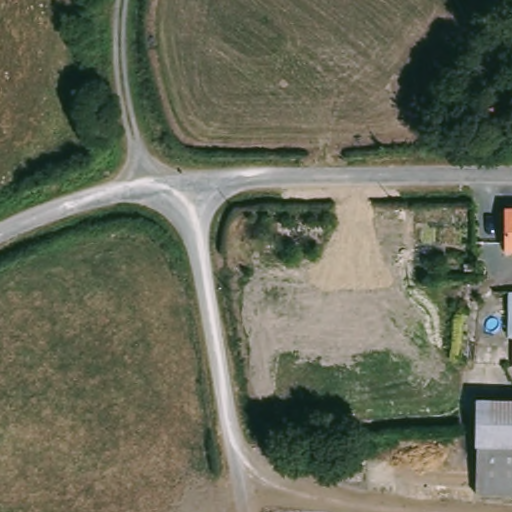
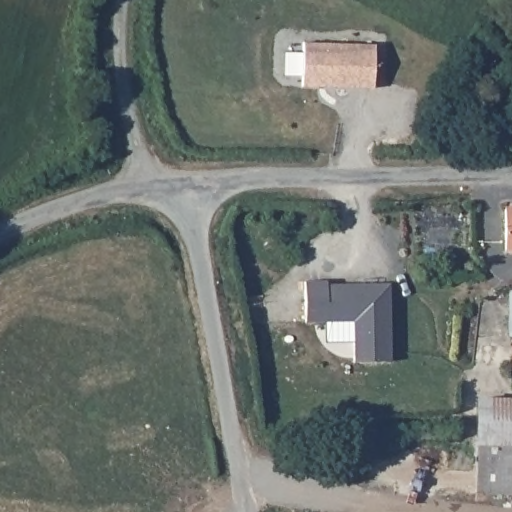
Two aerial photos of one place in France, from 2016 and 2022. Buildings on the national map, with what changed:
new [(376,45),(375,89),(302,88),(303,42),(376,45)]
unchanged [(512,206),(512,250),(511,250),(512,206)]
new [(328,282),(328,287),(391,285),(393,361),(354,363),(354,321),(305,323),(305,282),(328,282)]
unchanged [(511,292),(512,292),(512,336),(511,336),(511,292)]
unchanged [(512,446),(479,446),(479,400),(512,400),(512,446)]
unchanged [(479,446),(512,446),(512,494),(478,494),(479,446)]

